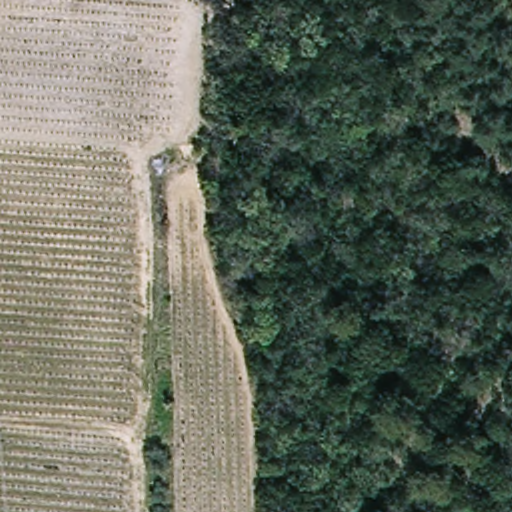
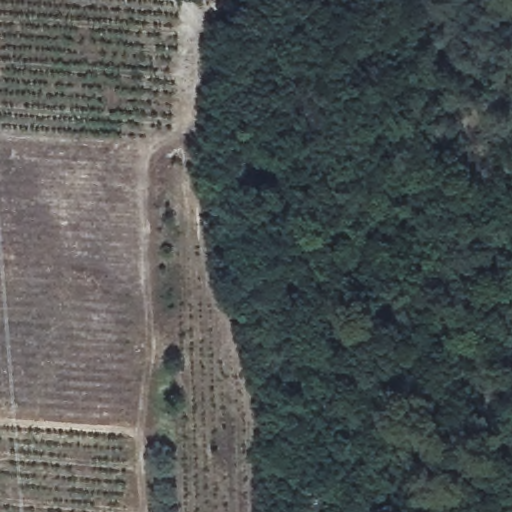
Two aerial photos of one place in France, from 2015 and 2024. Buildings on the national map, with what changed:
[]

